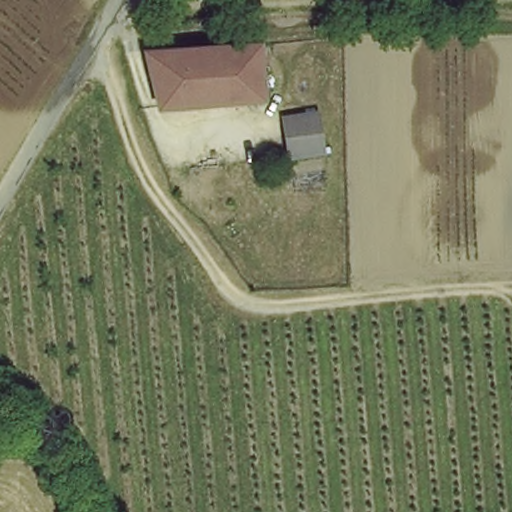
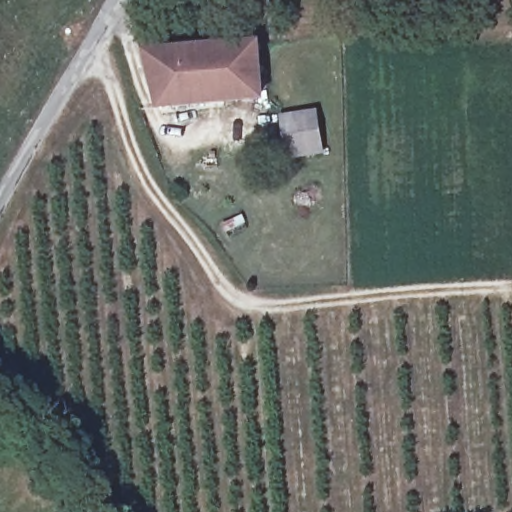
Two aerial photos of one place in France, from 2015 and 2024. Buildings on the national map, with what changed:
unchanged [(148,54),(256,39),(269,94),(209,98),(160,106),(148,54)]
unchanged [(321,149),(286,153),(284,141),(281,114),(316,110),(321,149)]

